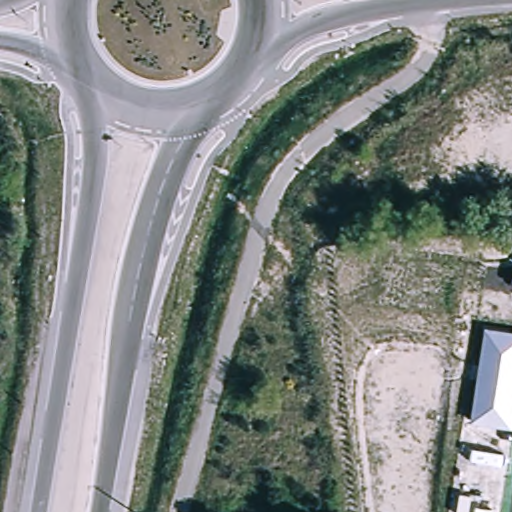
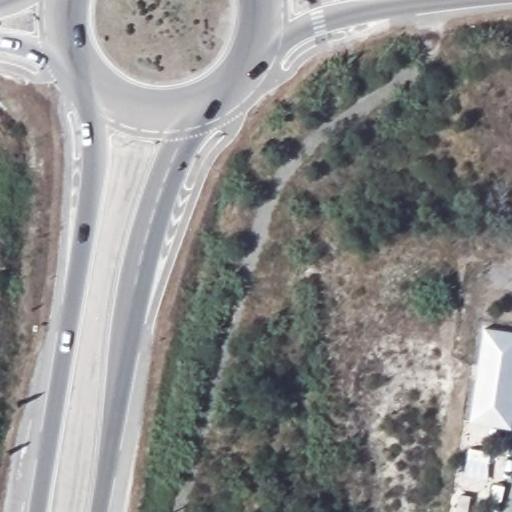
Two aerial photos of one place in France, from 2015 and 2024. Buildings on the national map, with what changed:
unchanged [(512,331),(512,430),(470,423),(484,326),(512,331)]

